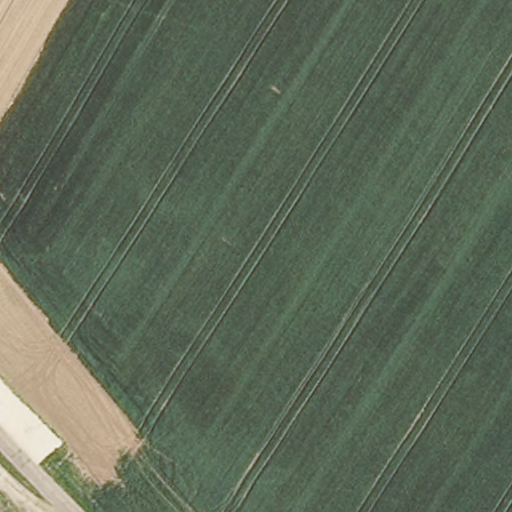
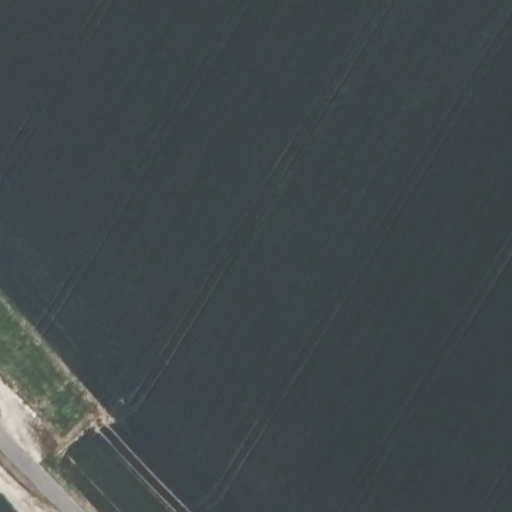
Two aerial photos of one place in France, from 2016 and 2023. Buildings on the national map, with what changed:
[]

